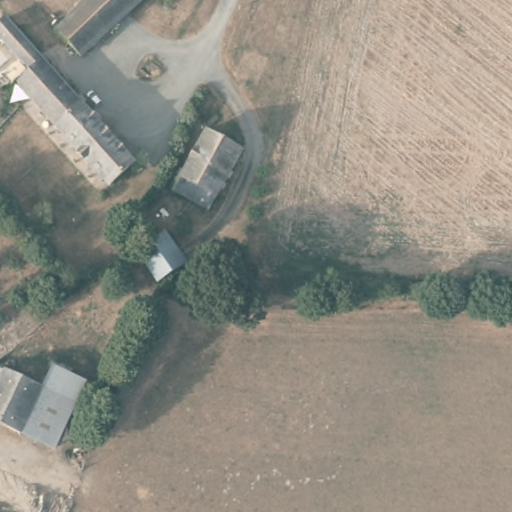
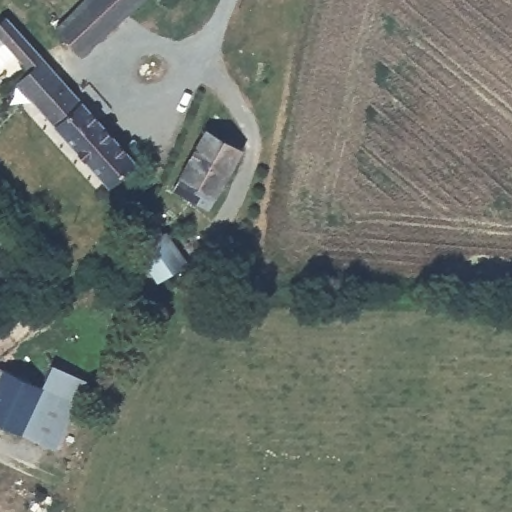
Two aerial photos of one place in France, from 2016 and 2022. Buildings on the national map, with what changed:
unchanged [(84,55),(59,29),(90,0),(140,0),(84,55)]
unchanged [(107,180),(16,79),(29,66),(0,36),(0,19),(6,14),(135,156),(107,180)]
unchanged [(239,147),(208,206),(174,190),(205,130),(239,147)]
unchanged [(136,241),(164,223),(186,254),(180,260),(186,268),(186,276),(179,281),(172,280),(166,271),(158,275),(136,241)]
unchanged [(44,388),(57,367),(87,382),(55,450),(25,435),(44,388)]
unchanged [(44,388),(25,435),(0,424),(0,391),(8,374),(44,388)]

